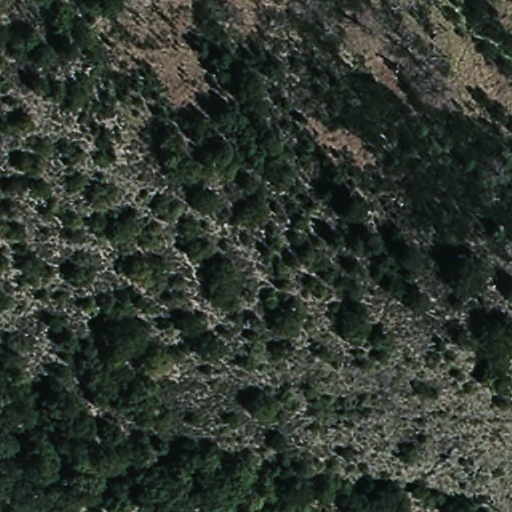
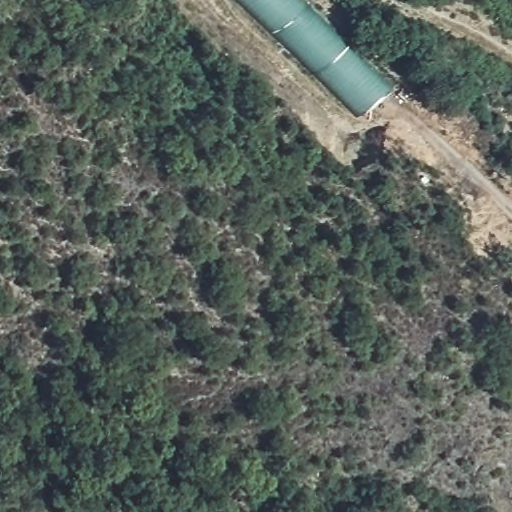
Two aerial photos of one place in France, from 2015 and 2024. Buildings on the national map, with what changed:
new [(239,0),(297,0),(391,88),(362,118),(239,0)]

